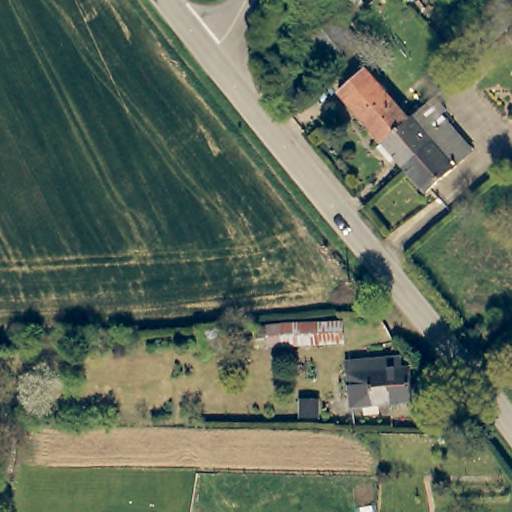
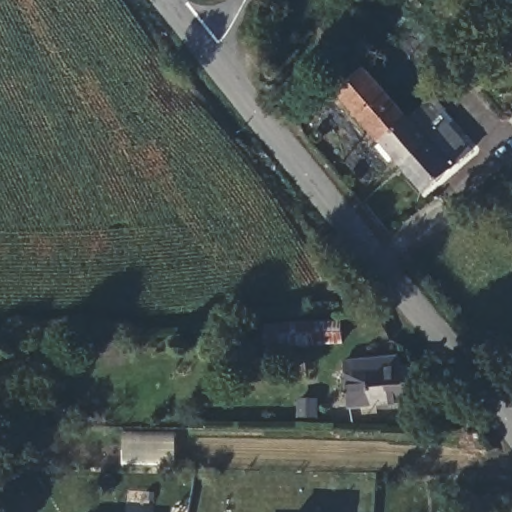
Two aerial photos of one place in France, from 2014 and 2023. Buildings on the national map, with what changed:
unchanged [(339,62),(314,33),(331,20),(356,48),(339,62)]
unchanged [(379,143),(340,94),(368,71),(409,119),(379,143)]
unchanged [(433,145),(409,119),(431,101),(444,117),(439,121),(471,160),(457,172),(433,145)]
unchanged [(409,119),(433,145),(402,171),(379,143),(409,119)]
unchanged [(433,145),(457,172),(424,198),(402,171),(433,145)]
unchanged [(342,319),(343,340),(269,348),(265,325),(342,319)]
unchanged [(411,404),(390,405),(350,408),(347,365),(370,364),(371,371),(389,371),(409,370),(411,404)]
unchanged [(319,407),(320,419),(303,421),(302,406),(319,407)]

